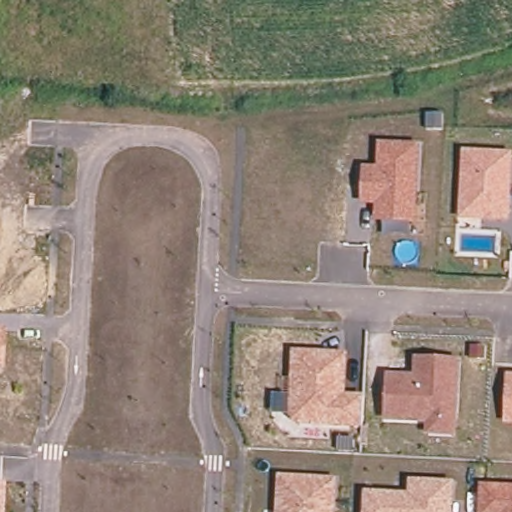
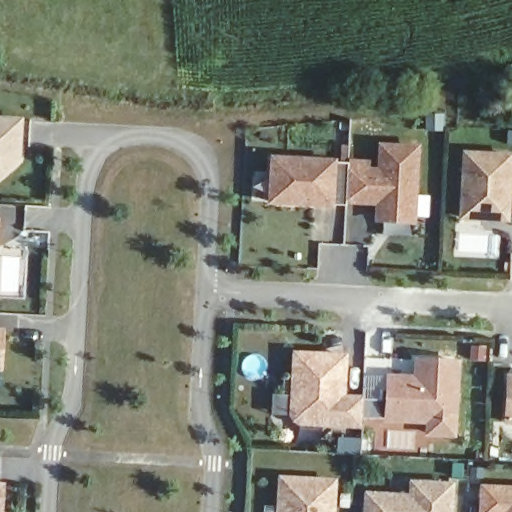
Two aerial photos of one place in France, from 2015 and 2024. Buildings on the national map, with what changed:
new [(23,116),(21,160),(0,178),(0,115),(23,116)]
unchanged [(421,143),(417,222),(374,220),(375,203),(360,202),(362,164),(376,165),(378,142),(421,143)]
unchanged [(512,199),(511,223),(457,220),(462,149),(512,150),(512,199)]
new [(337,159),(334,208),(268,204),(271,155),(337,159)]
unchanged [(4,327),(3,371),(0,371),(0,327),(4,327)]
unchanged [(347,351),(345,394),(364,394),(362,428),(296,424),(289,413),(292,349),(347,351)]
unchanged [(460,357),(457,436),(424,435),(425,422),(383,420),(386,370),(412,372),(414,355),(460,357)]
unchanged [(512,373),(512,424),(503,424),(505,373),(512,373)]
unchanged [(278,473),(337,477),(335,512),(274,512),(278,473)]
unchanged [(364,491),(407,493),(408,478),(454,480),(452,512),(363,512),(364,491)]
unchanged [(5,481),(4,512),(0,512),(0,481),(5,481)]
unchanged [(512,484),(512,512),(477,512),(478,482),(512,484)]

